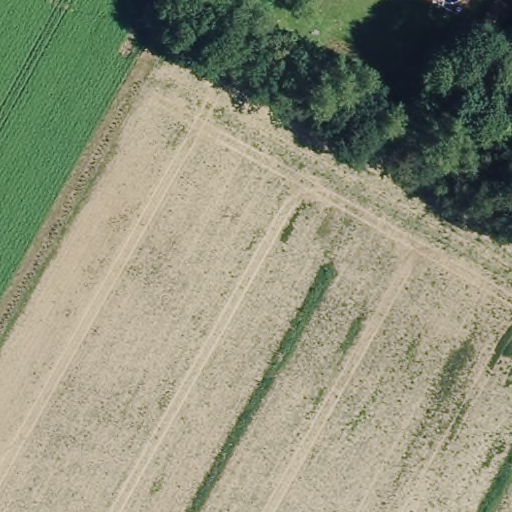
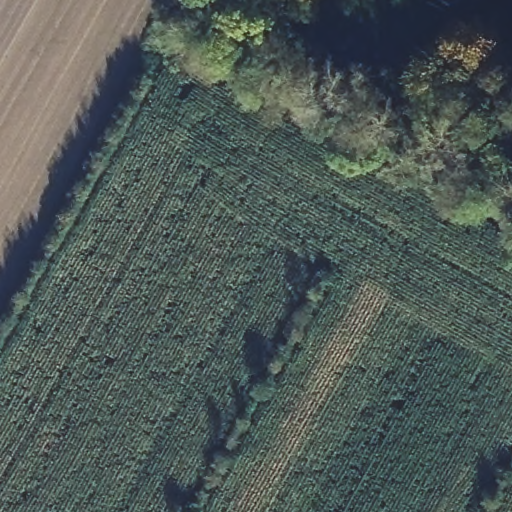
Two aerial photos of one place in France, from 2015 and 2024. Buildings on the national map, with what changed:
unchanged [(509,10),(493,36),(481,29),(479,28),(496,2),(509,10)]

